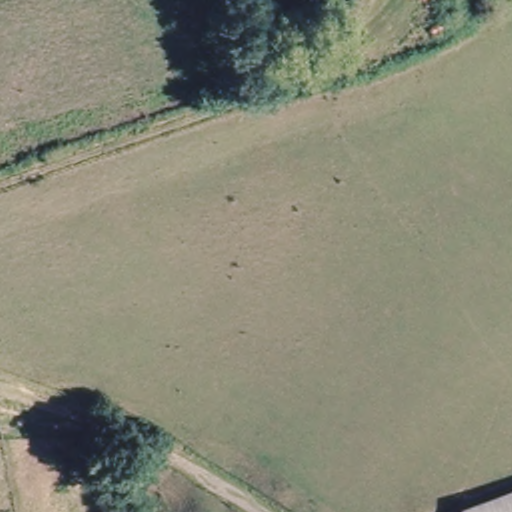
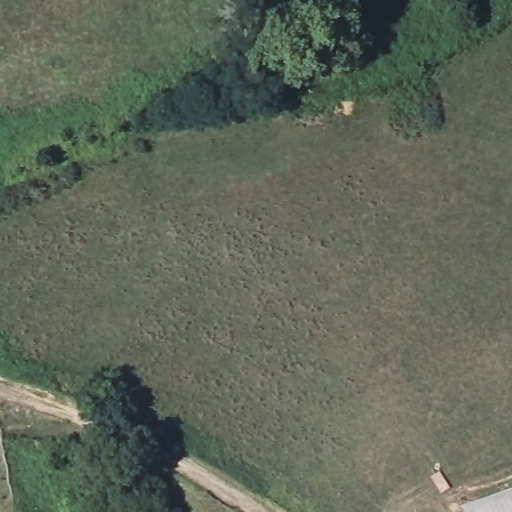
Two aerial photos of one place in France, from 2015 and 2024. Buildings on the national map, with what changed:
unchanged [(512,512),(470,512),(470,511),(512,496),(512,512)]

